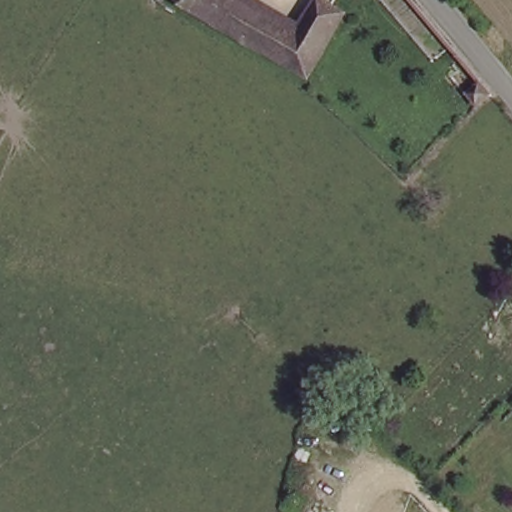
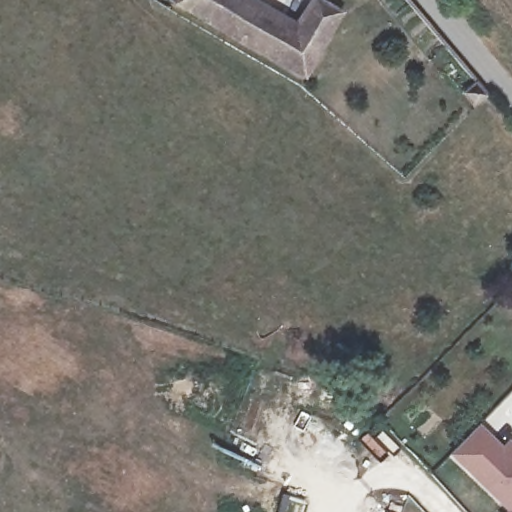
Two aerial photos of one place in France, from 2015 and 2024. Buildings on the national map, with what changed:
unchanged [(179,0),(256,0),(290,19),(302,0),(322,0),(340,11),(303,79),(177,2),(179,0)]
unchanged [(491,92),(481,103),(466,86),(477,75),(491,92)]
new [(506,440),(512,446),(512,512),(505,512),(507,510),(448,454),(477,426),(498,447),(506,440)]

